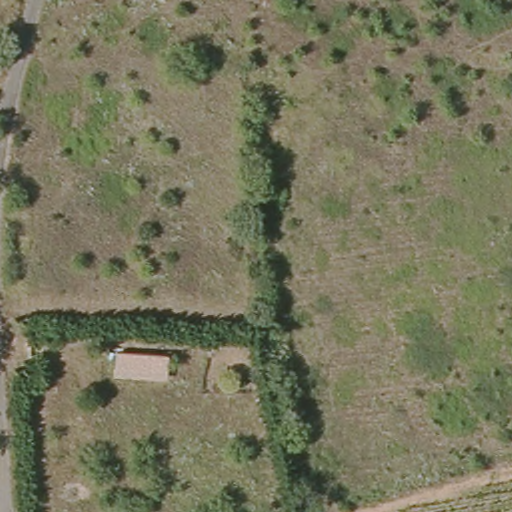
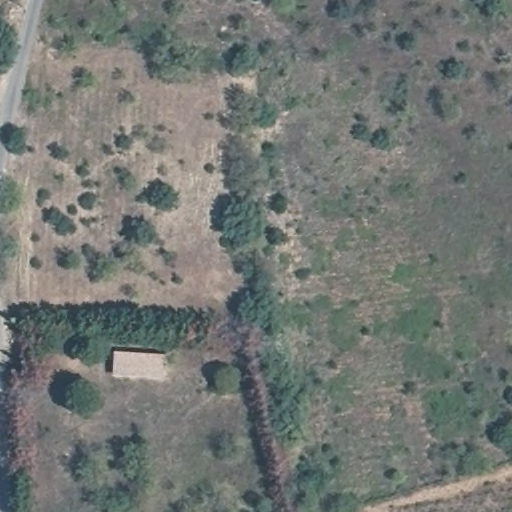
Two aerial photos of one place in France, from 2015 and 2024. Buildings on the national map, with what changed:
unchanged [(117,352),(169,355),(167,375),(118,370),(117,352)]

